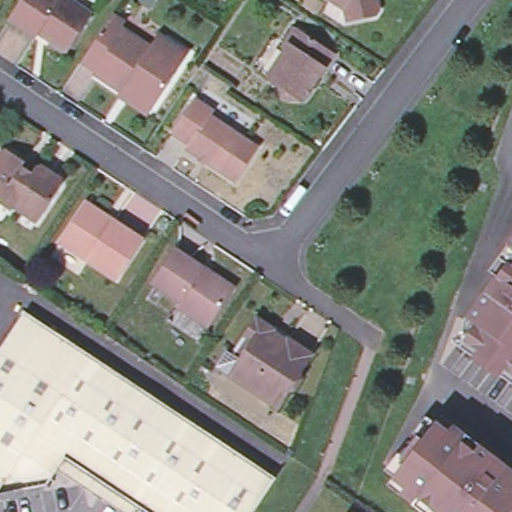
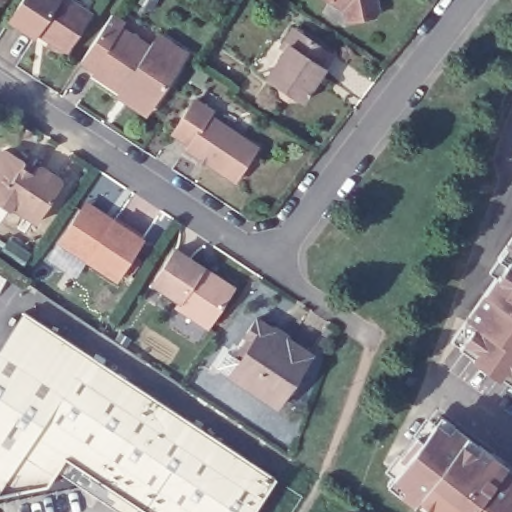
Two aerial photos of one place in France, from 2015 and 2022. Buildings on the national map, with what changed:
unchanged [(20,0),(69,0),(89,13),(63,51),(45,39),(46,37),(37,30),(32,37),(7,20),(20,0)]
unchanged [(377,8),(374,15),(345,20),(342,6),(332,0),(376,0),(377,8)]
unchanged [(115,95),(118,90),(92,74),(95,70),(80,60),(111,12),(124,20),(120,26),(147,45),(156,31),(167,39),(187,51),(152,105),(146,115),(115,95)]
unchanged [(301,104),(295,100),(287,103),(279,98),(277,89),(265,80),(287,47),(282,45),(291,30),(331,58),(322,72),(313,85),(301,104)]
unchanged [(194,103),(211,114),(207,119),(256,151),(234,184),(186,152),(189,147),(172,136),(194,103)]
unchanged [(60,191),(38,223),(14,206),(10,211),(0,205),(0,160),(1,159),(7,156),(24,167),(34,174),(42,172),(58,184),(60,191)]
unchanged [(116,279),(60,240),(84,206),(87,201),(115,220),(142,240),(116,279)]
unchanged [(449,342),(504,266),(497,261),(512,239),(512,386),(454,345),(449,342)]
unchanged [(179,302),(182,297),(157,280),(179,246),(207,265),(237,285),(234,290),(211,323),(179,302)]
unchanged [(272,477),(248,512),(151,512),(62,453),(45,480),(0,492),(0,341),(20,311),(272,477)]
unchanged [(226,353),(235,360),(247,339),(244,336),(255,320),(273,331),(270,336),(282,345),(285,341),(310,356),(298,375),(299,378),(291,391),(287,392),(277,408),(230,376),(217,367),(226,353)]
unchanged [(510,512),(422,512),(385,484),(438,416),(477,446),(471,454),(483,463),(489,455),(512,474),(512,509),(510,512)]

